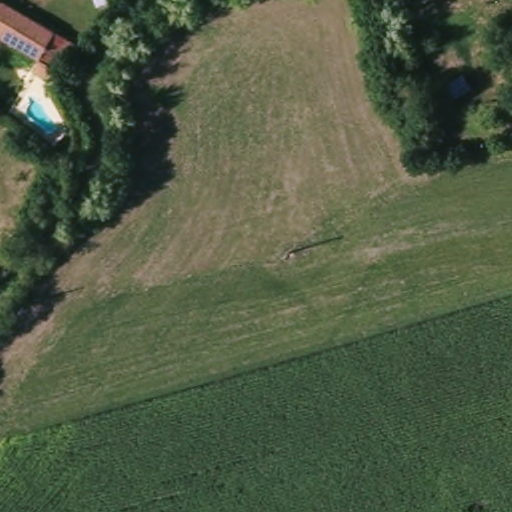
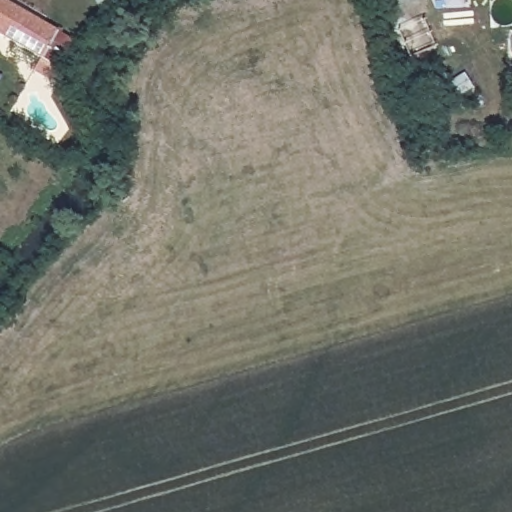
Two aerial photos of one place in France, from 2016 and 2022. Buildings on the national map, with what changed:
unchanged [(0,0),(5,0),(80,41),(61,68),(0,35),(0,0)]

